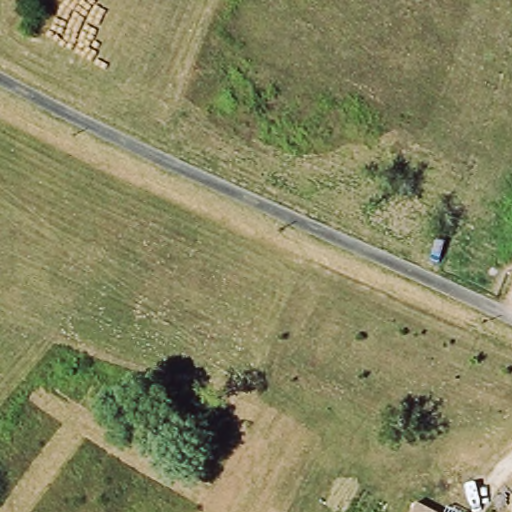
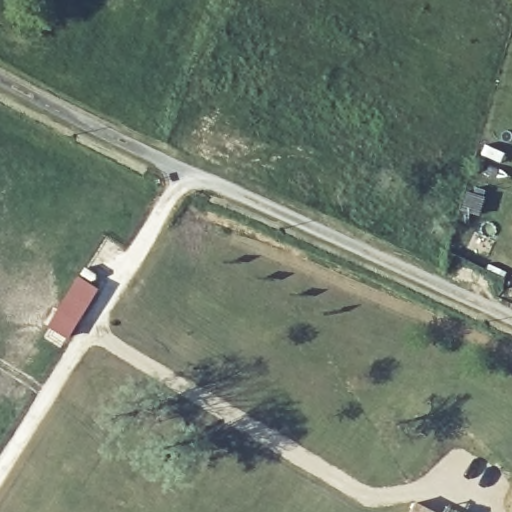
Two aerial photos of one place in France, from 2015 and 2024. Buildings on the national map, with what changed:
new [(79,276),(100,288),(79,324),(75,324),(74,334),(47,331),(79,276)]
unchanged [(437,512),(409,512),(414,501),(437,512)]

